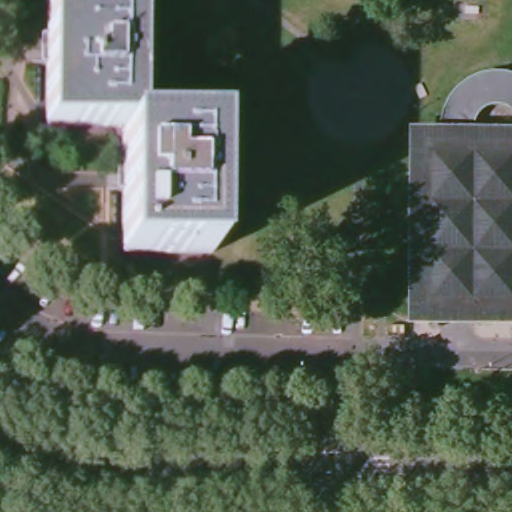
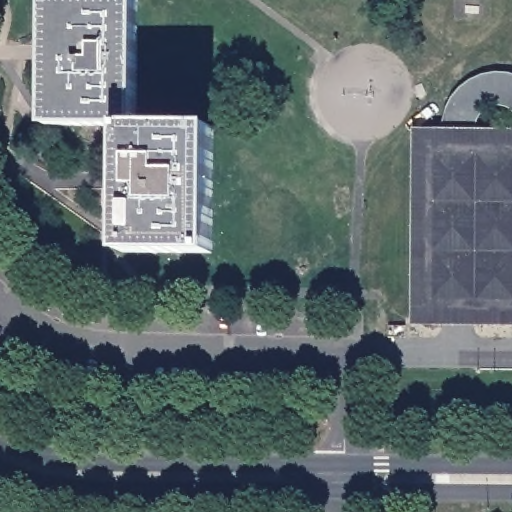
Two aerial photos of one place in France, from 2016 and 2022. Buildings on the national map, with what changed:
unchanged [(49,0),(138,0),(138,121),(123,121),(48,120),(49,0)]
unchanged [(444,124),(444,120),(445,116),(447,113),(449,109),(452,104),(454,100),(457,96),(460,94),(465,90),(470,86),(474,84),(479,82),(484,80),(489,79),(495,79),(499,79),(504,79),(509,80),(512,81),(512,323),(415,322),(419,141),(444,141),(443,127),(444,124)]
unchanged [(213,250),(121,249),(123,121),(138,121),(213,124),(213,250)]

